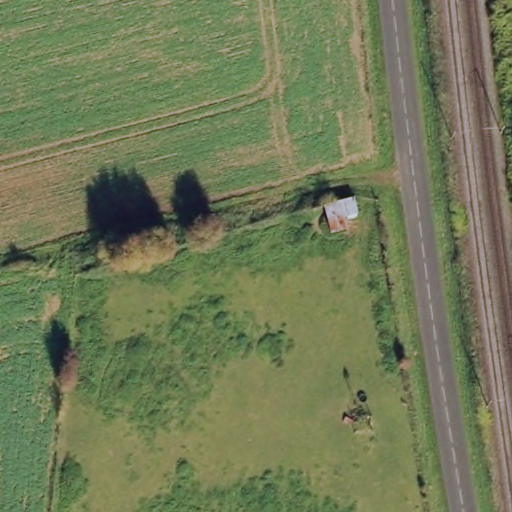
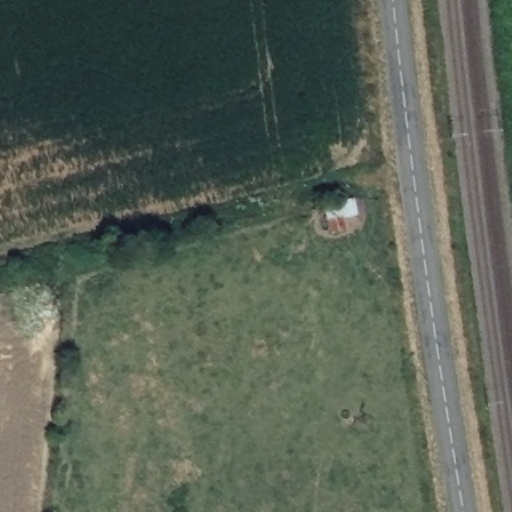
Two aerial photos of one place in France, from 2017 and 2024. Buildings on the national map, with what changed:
unchanged [(359,216),(344,220),(344,231),(330,233),(324,206),(357,199),(359,216)]

